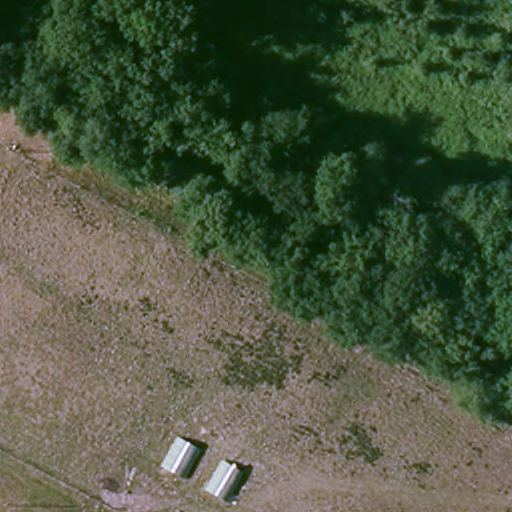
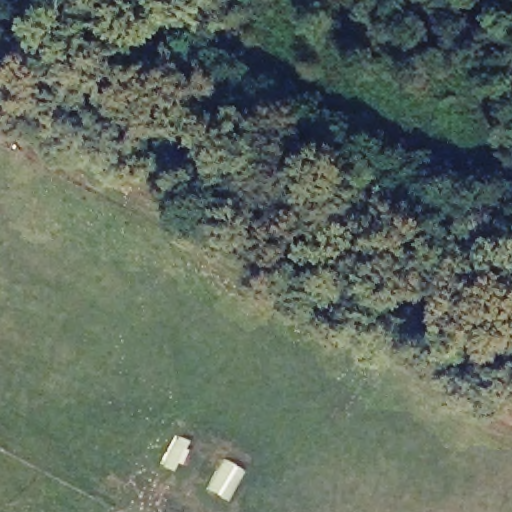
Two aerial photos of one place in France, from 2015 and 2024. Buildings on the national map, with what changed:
unchanged [(199,448),(182,477),(161,466),(177,436),(199,448)]
unchanged [(242,471),(226,500),(205,490),(222,460),(242,471)]

